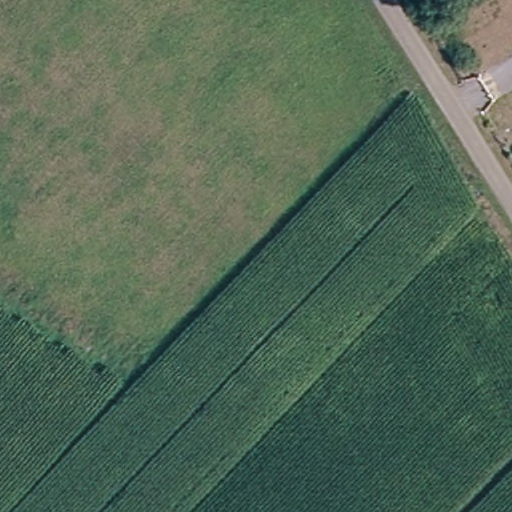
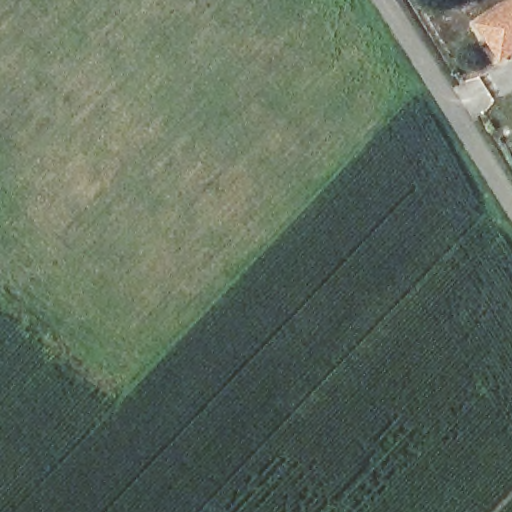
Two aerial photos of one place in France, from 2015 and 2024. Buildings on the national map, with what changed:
new [(512,59),(501,65),(478,26),(512,4),(512,59)]

